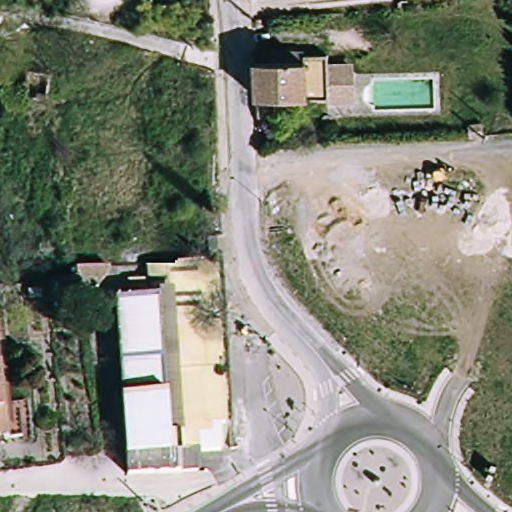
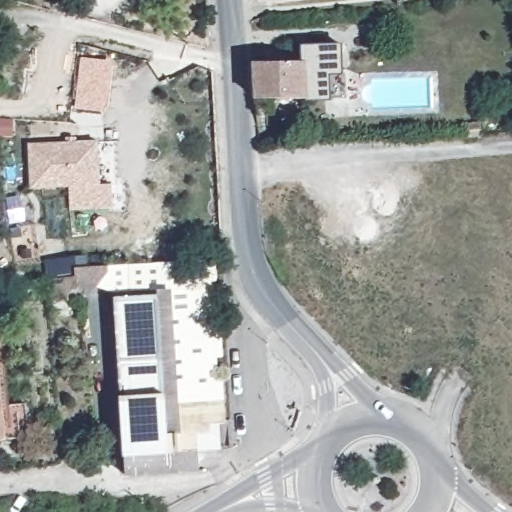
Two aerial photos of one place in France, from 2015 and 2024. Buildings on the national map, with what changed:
unchanged [(309,106),(259,107),(256,51),(328,54),(332,96),(312,98),(309,106)]
new [(107,112),(75,109),(80,57),(113,61),(107,112)]
unchanged [(57,101),(35,99),(39,68),(62,70),(57,101)]
new [(28,143),(98,140),(100,185),(112,184),(113,207),(70,210),(70,187),(30,189),(28,143)]
unchanged [(113,447),(110,302),(123,302),(122,282),(151,280),(150,257),(189,251),(211,248),(233,445),(189,446),(188,470),(174,478),(169,477),(114,474),(113,447)]
new [(67,295),(50,297),(47,261),(75,259),(75,268),(102,266),(103,289),(66,292),(67,295)]
unchanged [(14,439),(0,439),(0,412),(11,412),(14,439)]

